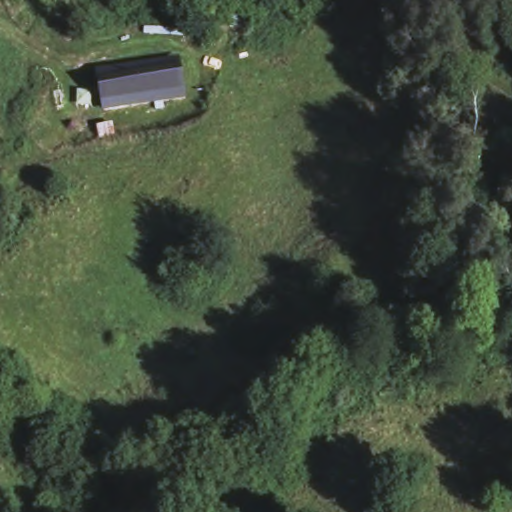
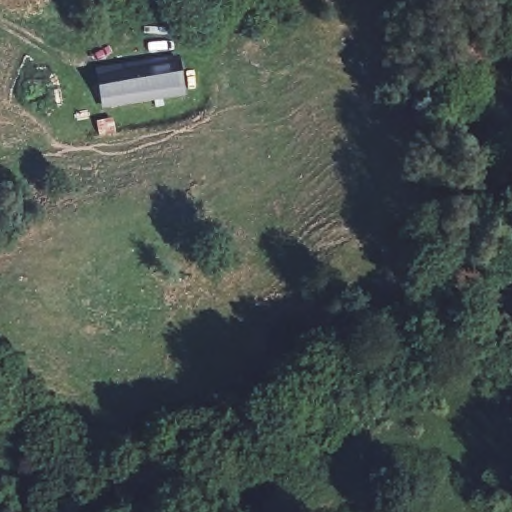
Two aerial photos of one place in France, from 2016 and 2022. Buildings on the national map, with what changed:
unchanged [(186,90),(99,101),(91,56),(147,51),(177,47),(186,90)]

